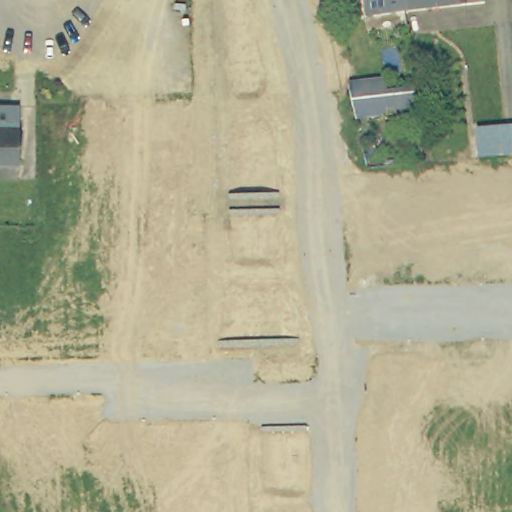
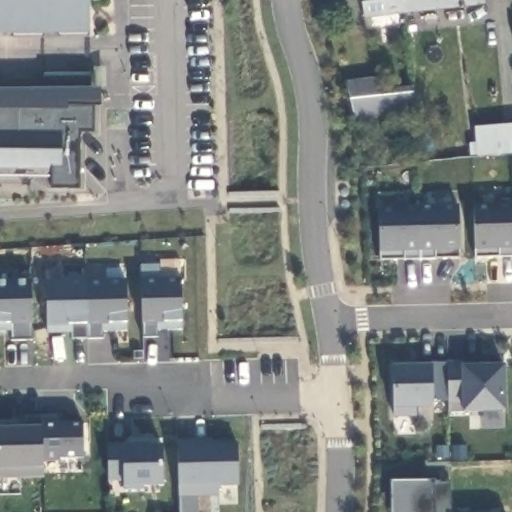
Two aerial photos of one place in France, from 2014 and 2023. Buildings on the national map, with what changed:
new [(88,29),(88,36),(57,36),(57,30),(43,30),(43,36),(12,37),(12,31),(0,31),(0,0),(88,0),(88,29)]
unchanged [(404,13),(364,18),(361,0),(402,0),(404,13)]
unchanged [(487,3),(404,13),(402,0),(487,0),(487,3)]
new [(45,84),(44,72),(87,72),(88,85),(99,85),(99,104),(92,104),(93,130),(79,130),(79,187),(49,186),(50,164),(0,164),(0,85),(45,84)]
unchanged [(386,77),(389,87),(412,84),(414,112),(354,120),(346,81),(386,77)]
demolished [(12,94),(13,158),(0,158),(0,95),(12,94)]
unchanged [(512,152),(480,155),(478,133),(511,131),(512,137),(512,152)]
new [(512,258),(475,258),(473,205),(512,204),(512,258)]
unchanged [(458,207),(458,259),(434,260),(434,250),(419,251),(419,259),(379,260),(378,207),(458,207)]
new [(182,329),(157,331),(157,335),(143,335),(143,325),(140,280),(139,266),(160,266),(161,280),(180,279),(182,329)]
new [(32,326),(31,338),(10,339),(10,331),(0,332),(0,279),(11,279),(10,272),(29,272),(32,326)]
new [(126,332),(101,332),(101,337),(87,337),(86,275),(103,274),(104,279),(124,278),(126,332)]
new [(432,366),(460,366),(504,365),(505,412),(462,413),(461,401),(434,402),(434,408),(415,409),(415,417),(393,417),(393,408),(392,367),(432,366)]
unchanged [(27,426),(25,418),(42,417),(42,424),(83,423),(83,460),(42,462),(42,470),(43,478),(0,480),(0,428),(27,426)]
new [(212,439),(213,444),(236,443),(237,487),(216,488),(218,498),(196,499),(196,512),(180,512),(178,440),(212,439)]
new [(107,446),(121,447),(161,445),(162,486),(123,487),(122,482),(108,482),(107,446)]
new [(433,485),(449,484),(450,512),(391,512),(391,483),(434,482),(433,485)]

